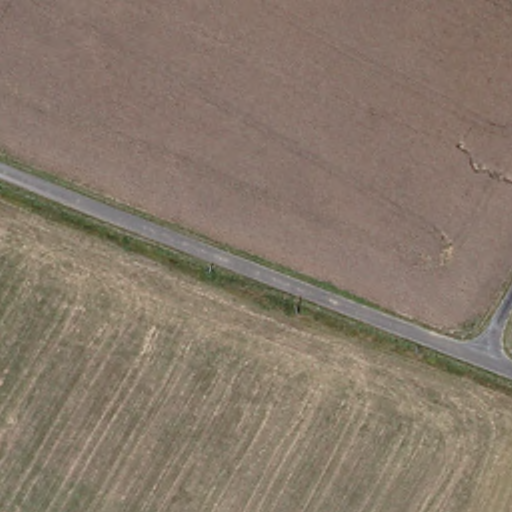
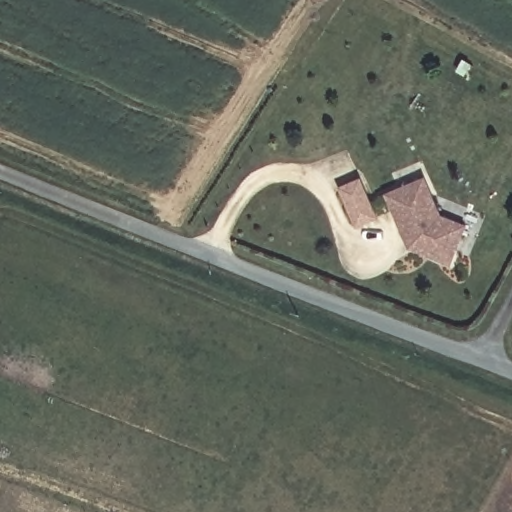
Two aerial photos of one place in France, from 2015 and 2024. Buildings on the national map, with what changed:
new [(439,213),(467,223),(450,265),(408,248),(384,194),(424,175),(439,213)]

